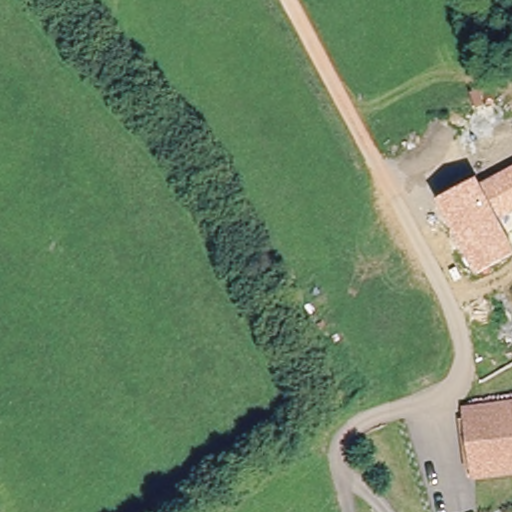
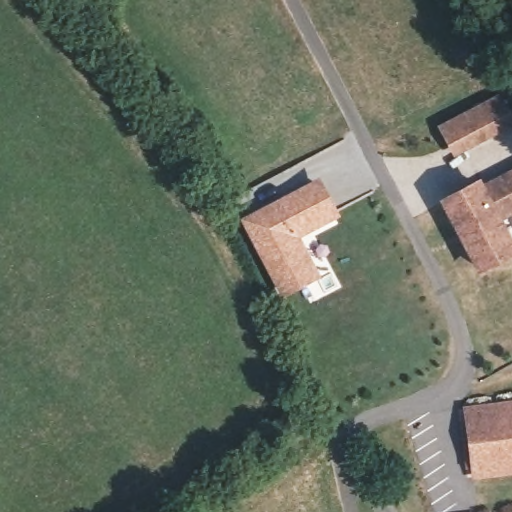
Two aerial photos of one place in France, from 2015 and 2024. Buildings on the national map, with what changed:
new [(512,114),(512,125),(453,156),(436,126),(499,92),(512,114)]
unchanged [(512,240),(512,255),(477,274),(437,199),(479,177),(481,183),(512,167),(512,212),(500,218),(512,240)]
new [(279,298),(238,220),(318,178),(339,217),(300,239),(320,277),(279,298)]
unchanged [(512,408),(466,414),(465,405),(512,399),(512,408)]
unchanged [(473,465),(466,414),(512,408),(512,468),(474,473),(473,465)]

